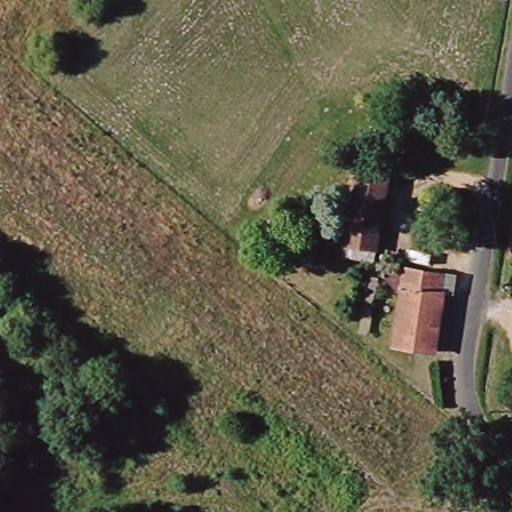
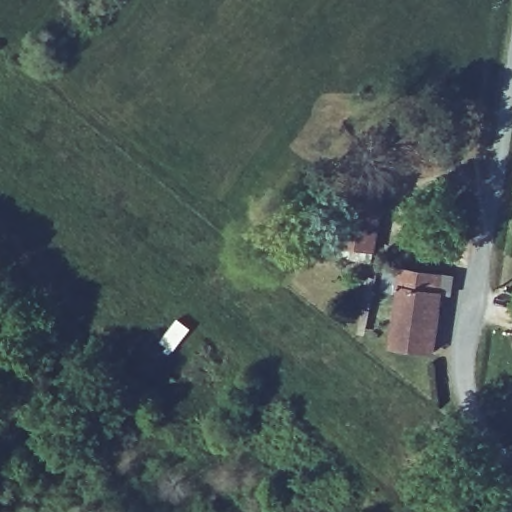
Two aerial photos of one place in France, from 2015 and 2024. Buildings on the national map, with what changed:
unchanged [(377,254),(346,249),(358,178),(390,184),(377,254)]
unchanged [(443,295),(447,296),(437,354),(395,346),(408,269),(447,276),(443,295)]

